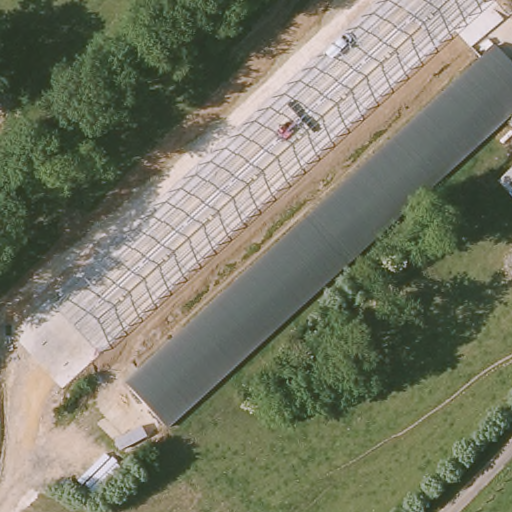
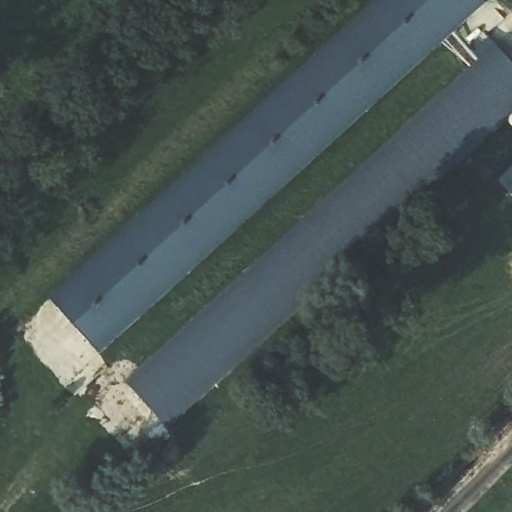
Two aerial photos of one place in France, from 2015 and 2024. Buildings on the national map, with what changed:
new [(351,0),(456,0),(96,356),(44,303),(351,0)]
unchanged [(177,429),(135,387),(491,35),(512,56),(512,97),(177,429)]
new [(512,167),(512,194),(499,180),(512,167)]

